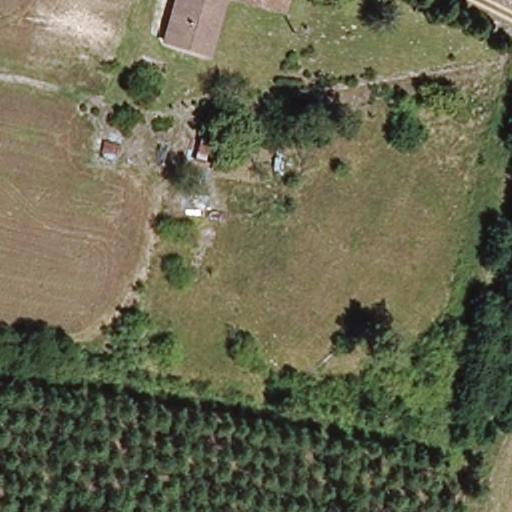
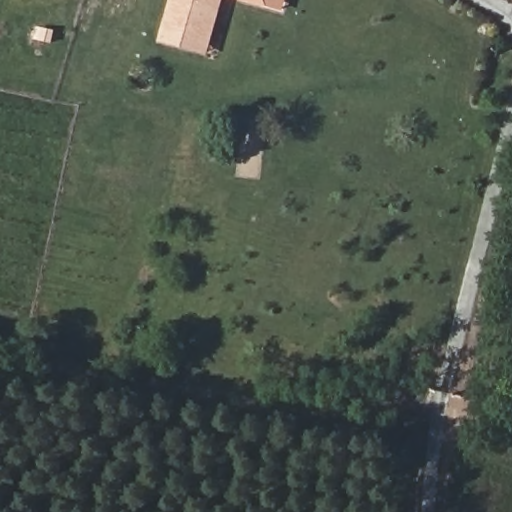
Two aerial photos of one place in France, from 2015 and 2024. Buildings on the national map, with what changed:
unchanged [(188,45),(169,39),(159,36),(169,0),(217,0),(202,50),(188,45)]
unchanged [(272,12),(258,7),(235,0),(276,0),(272,12)]

